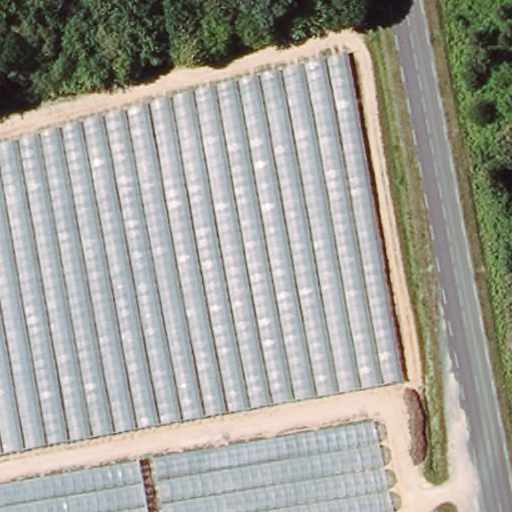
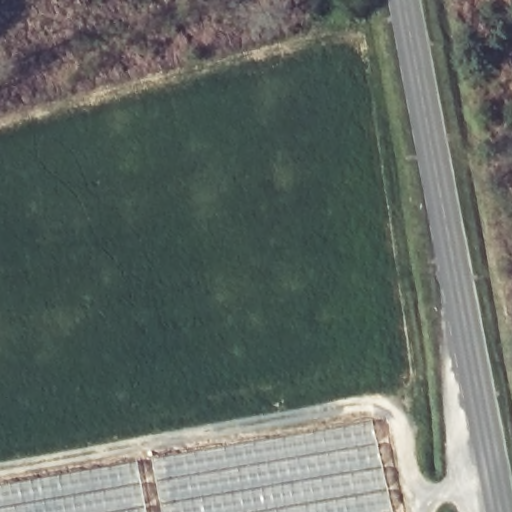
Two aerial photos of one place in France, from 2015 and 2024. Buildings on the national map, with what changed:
demolished [(0,163),(0,142),(346,54),(403,382),(49,445),(0,163)]

